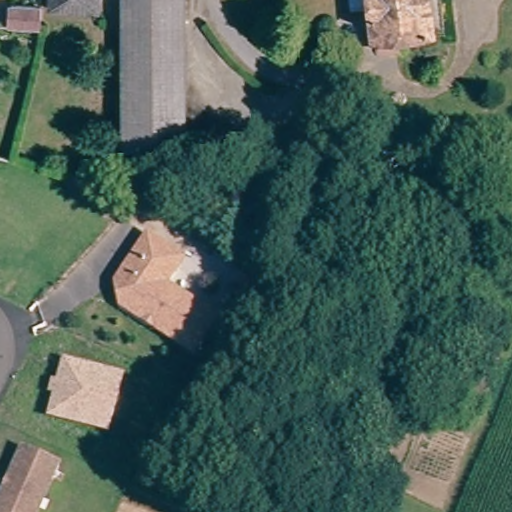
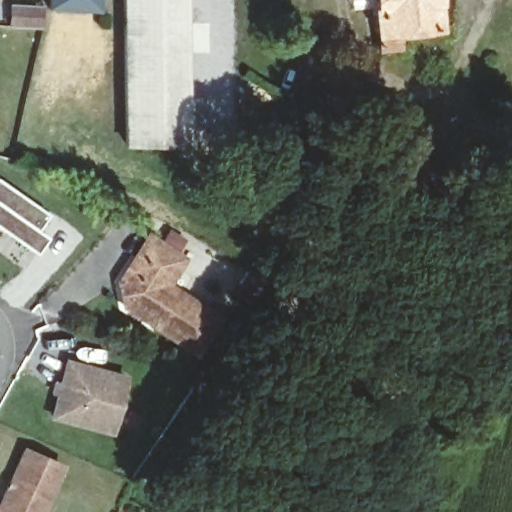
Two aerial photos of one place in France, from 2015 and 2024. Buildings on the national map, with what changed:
unchanged [(54,12),(54,0),(100,0),(100,13),(54,12)]
unchanged [(122,23),(121,0),(178,0),(179,20),(122,23)]
unchanged [(377,51),(373,0),(429,0),(431,30),(400,32),(402,49),(377,51)]
unchanged [(46,7),(45,12),(45,30),(15,29),(16,6),(46,7)]
unchanged [(162,145),(130,147),(122,23),(179,20),(184,86),(188,143),(162,145)]
new [(50,215),(39,231),(48,237),(35,254),(0,228),(0,180),(50,215)]
unchanged [(122,283),(141,254),(152,236),(187,258),(171,284),(222,317),(199,352),(159,326),(127,306),(122,283)]
unchanged [(270,281),(262,294),(247,284),(255,272),(270,281)]
unchanged [(127,377),(114,432),(56,417),(62,395),(56,393),(58,383),(64,385),(70,363),(127,377)]
unchanged [(2,510),(27,451),(64,467),(45,512),(0,512),(0,509),(2,510)]

